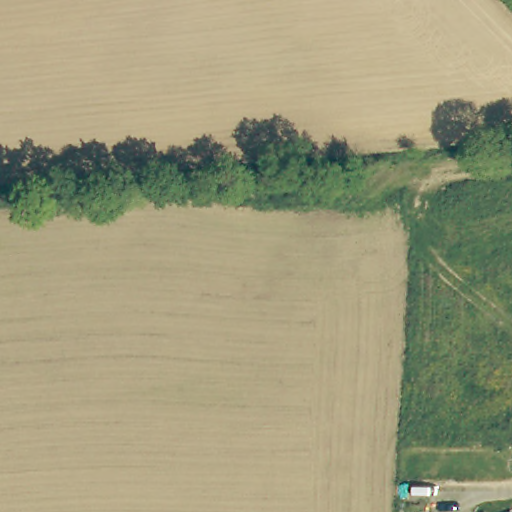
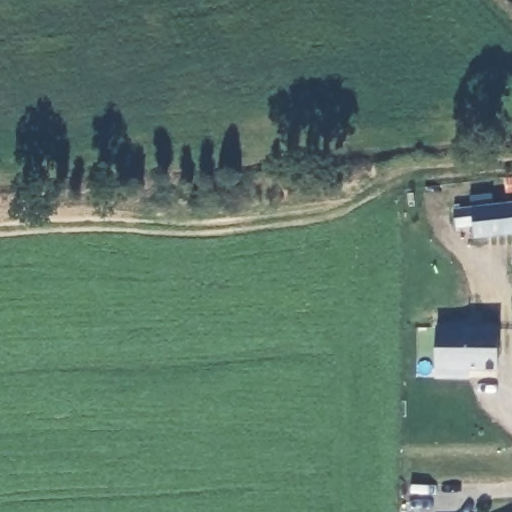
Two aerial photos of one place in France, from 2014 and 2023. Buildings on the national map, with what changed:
new [(472,228),(455,231),(452,208),(471,206),(470,196),(492,194),(493,205),(512,203),(512,233),(475,238),(472,228)]
new [(469,371),(469,380),(434,379),(434,325),(498,326),(497,372),(469,371)]

